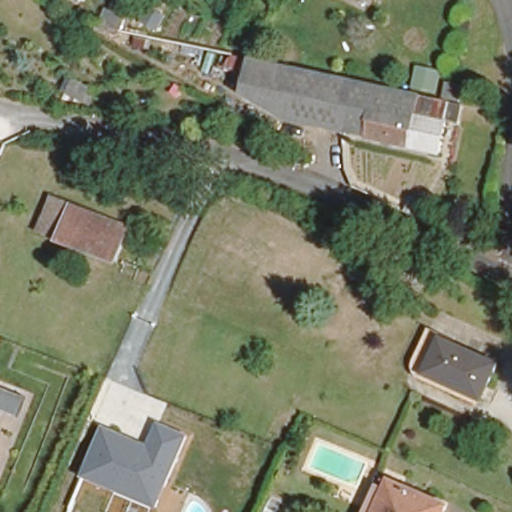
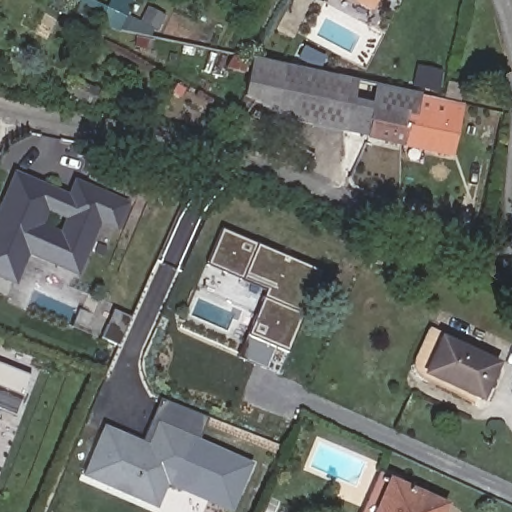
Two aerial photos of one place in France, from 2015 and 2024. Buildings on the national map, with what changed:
unchanged [(123,0),(139,0),(134,13),(120,6),(123,0)]
unchanged [(120,6),(135,15),(128,30),(106,20),(115,5),(120,6)]
unchanged [(370,88),(442,102),(452,105),(453,105),(457,81),(475,85),(471,108),(459,105),(455,126),(443,125),(436,157),(405,150),(365,140),(361,140),(343,136),(281,124),(238,100),(246,64),(347,84),(370,88)]
new [(68,192),(74,177),(130,199),(118,230),(100,223),(80,277),(28,256),(16,286),(0,280),(0,202),(13,171),(68,192)]
unchanged [(408,200),(415,186),(435,196),(429,209),(408,200)]
demolished [(39,235),(53,199),(130,228),(116,262),(59,241),(39,235)]
new [(265,291),(240,281),(205,266),(221,229),(256,244),(323,272),(304,316),(288,354),(246,336),(262,298),(265,291)]
new [(111,310),(130,318),(123,333),(117,346),(99,338),(105,325),(111,310)]
unchanged [(437,339),(497,364),(481,405),(423,376),(436,338),(437,339)]
unchanged [(17,417),(0,411),(0,387),(25,396),(17,417)]
new [(160,400),(208,418),(198,439),(254,463),(233,512),(231,512),(169,486),(190,435),(158,421),(149,443),(143,441),(160,400)]
unchanged [(149,443),(158,421),(190,435),(159,510),(82,478),(104,425),(149,443)]
unchanged [(385,483),(447,511),(447,512),(371,512),(385,483)]

